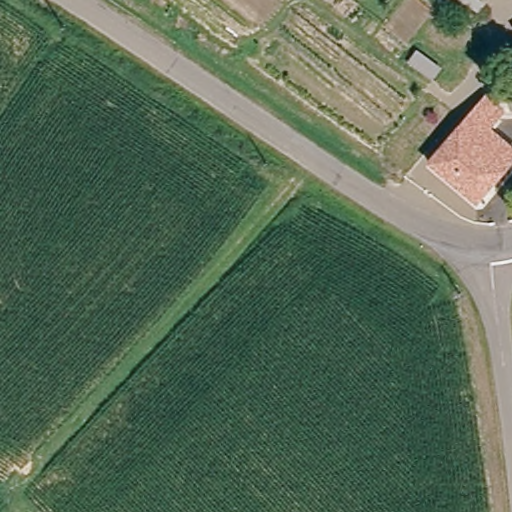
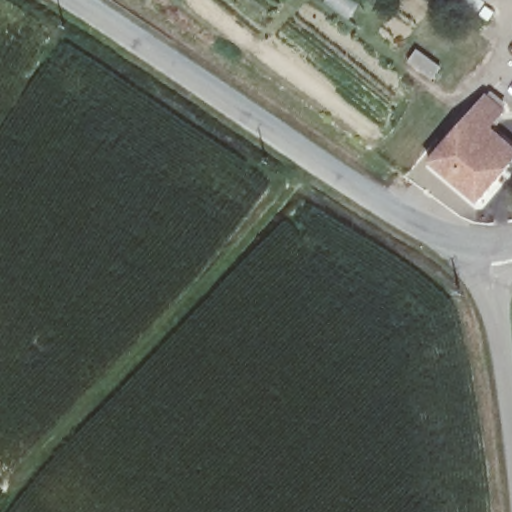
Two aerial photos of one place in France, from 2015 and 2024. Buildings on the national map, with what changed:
unchanged [(483,97),(497,111),(484,127),(512,150),(512,156),(472,202),(458,190),(425,160),(483,97)]

